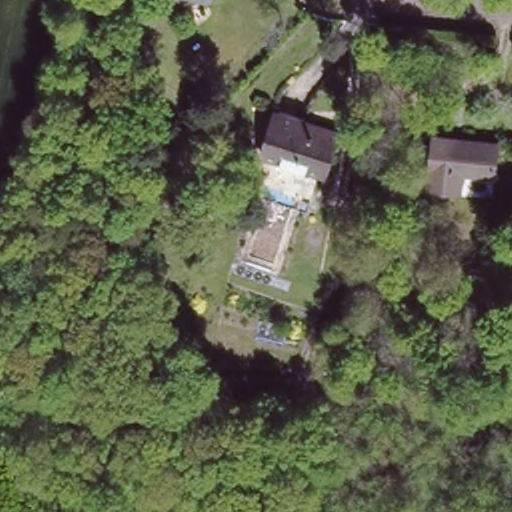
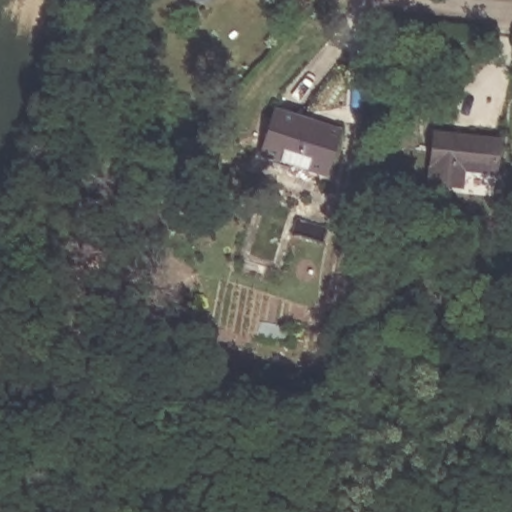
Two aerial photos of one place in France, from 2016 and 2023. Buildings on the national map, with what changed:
unchanged [(196,0),(208,0),(208,3),(196,0)]
unchanged [(275,109),(334,126),(323,167),(264,150),(275,109)]
unchanged [(497,137),(494,169),(462,166),(461,180),(434,177),(438,132),(497,137)]

